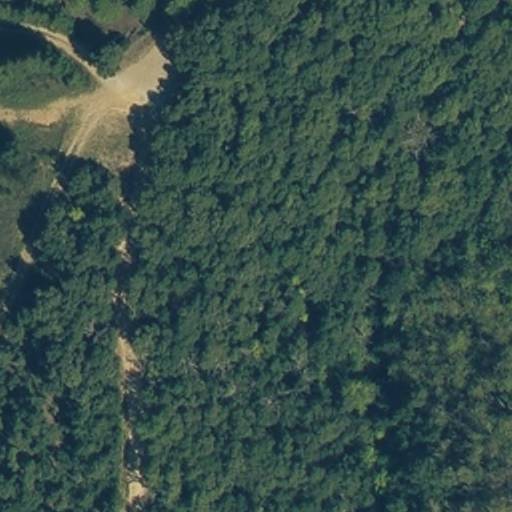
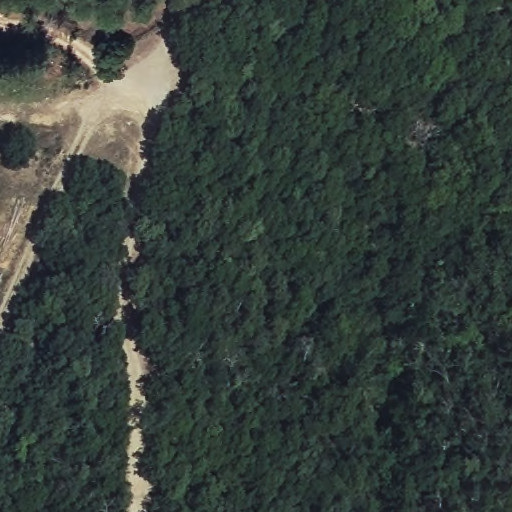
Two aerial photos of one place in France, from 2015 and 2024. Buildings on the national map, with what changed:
[]

